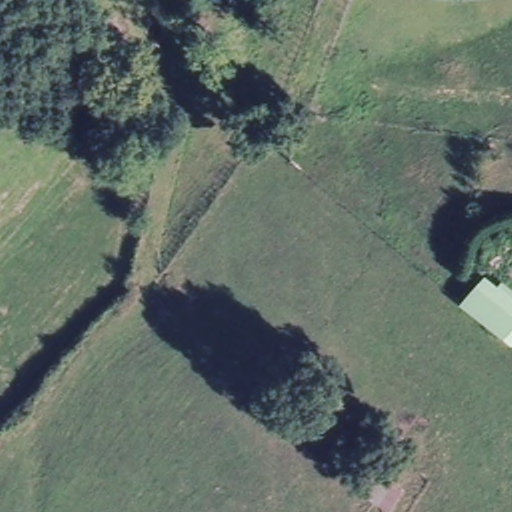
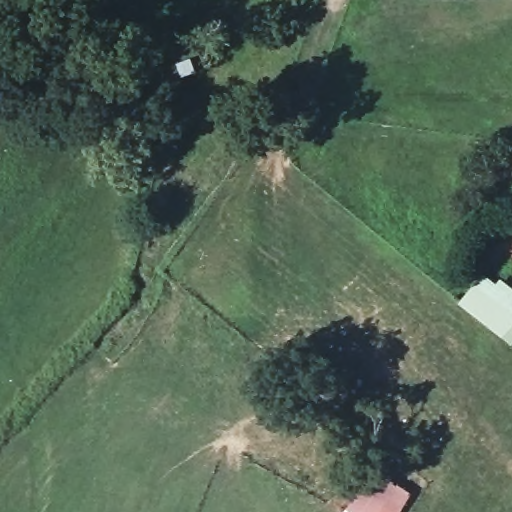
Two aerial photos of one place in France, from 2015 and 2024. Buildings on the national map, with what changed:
unchanged [(102,14),(127,40),(106,60),(81,34),(102,14)]
unchanged [(482,277),(495,287),(500,282),(512,291),(512,344),(460,303),(482,277)]
demolished [(357,512),(375,478),(396,493),(386,512),(357,512)]
new [(412,493),(400,512),(344,512),(355,495),(394,481),(412,493)]

